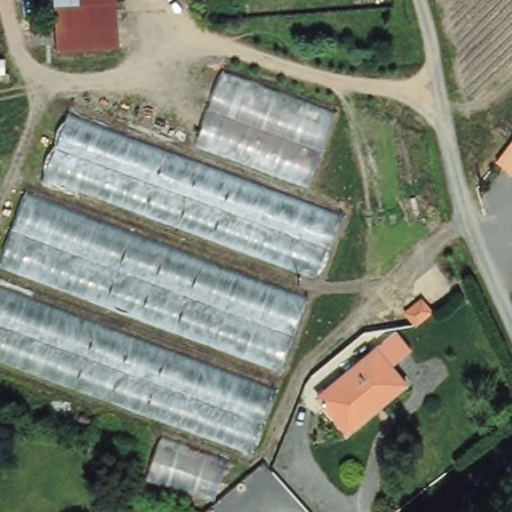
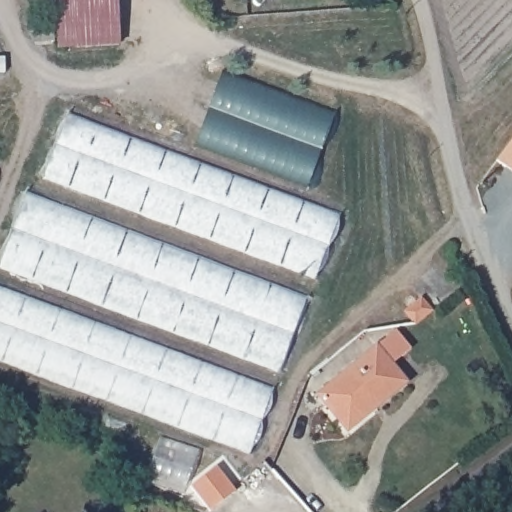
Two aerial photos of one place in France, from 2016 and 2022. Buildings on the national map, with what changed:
unchanged [(53,52),(50,0),(112,0),(115,49),(53,52)]
unchanged [(197,147),(222,72),(333,113),(305,189),(197,147)]
unchanged [(42,179),(69,115),(337,215),(313,280),(42,179)]
unchanged [(493,163),(497,160),(512,140),(512,178),(493,163)]
unchanged [(0,260),(25,195),(305,296),(277,373),(0,267),(0,260)]
unchanged [(0,287),(276,390),(246,457),(0,364),(0,287)]
unchanged [(432,311),(416,324),(406,312),(422,298),(432,311)]
unchanged [(344,427),(317,395),(377,346),(407,383),(377,408),(347,432),(344,427)]

